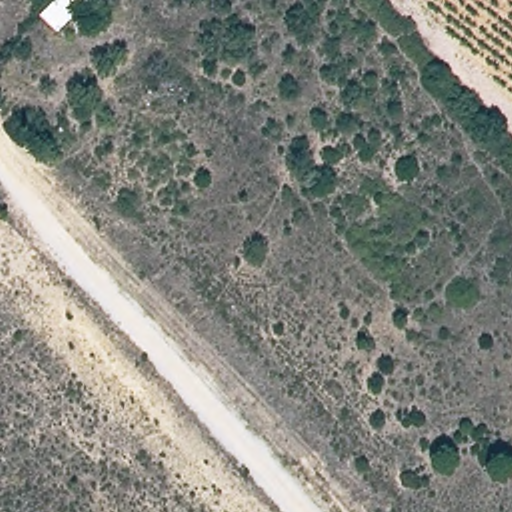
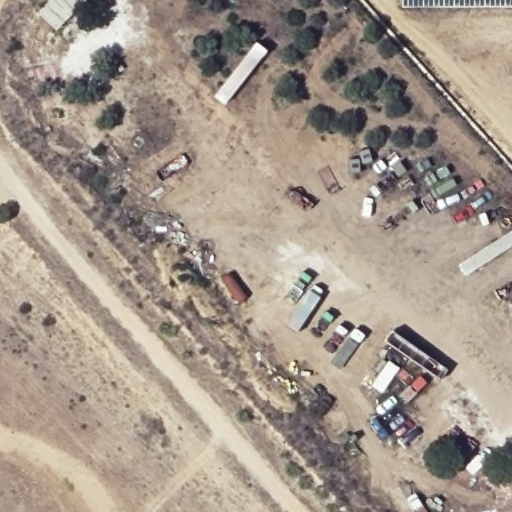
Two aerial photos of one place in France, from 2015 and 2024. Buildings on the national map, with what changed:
unchanged [(91,0),(58,32),(37,12),(50,0),(91,0)]
new [(400,0),(512,0),(512,8),(400,8),(400,0)]

